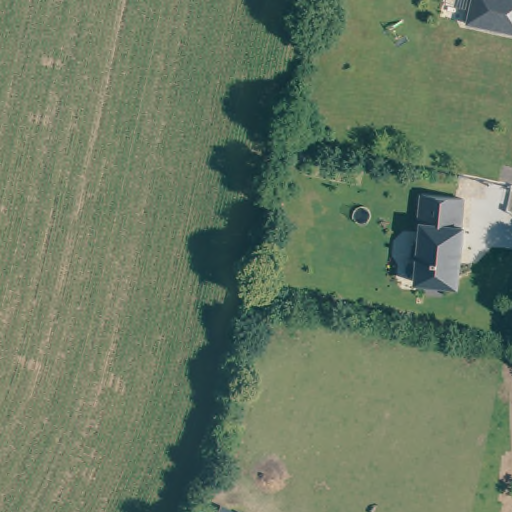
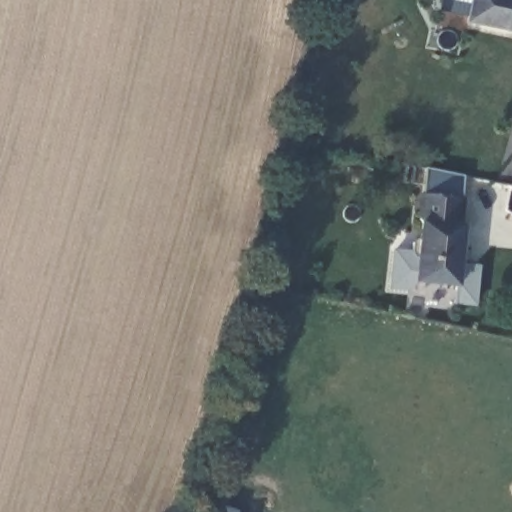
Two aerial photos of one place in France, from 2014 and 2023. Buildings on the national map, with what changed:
unchanged [(474,20),(478,0),(512,0),(512,28),(474,20)]
unchanged [(422,239),(423,222),(421,219),(422,195),(464,198),(462,225),(465,225),(463,250),(461,250),(460,260),(462,260),(460,285),(418,282),(420,258),(416,258),(413,253),(414,243),(417,239),(422,239)]

